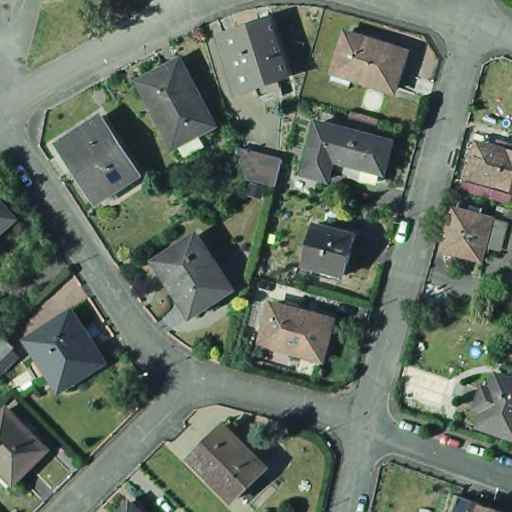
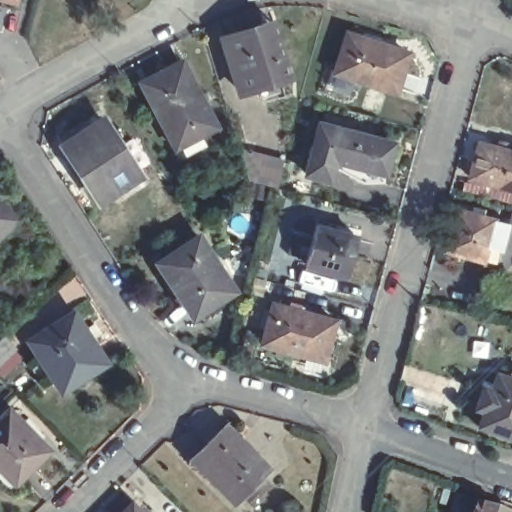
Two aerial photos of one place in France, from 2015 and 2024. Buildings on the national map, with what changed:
unchanged [(238,90),(219,35),(252,24),(269,18),(273,28),(288,74),(238,90)]
unchanged [(339,78),(344,64),(354,25),(416,42),(404,80),(363,69),(358,83),(339,78)]
unchanged [(183,58),(218,122),(178,145),(154,103),(143,82),(148,78),(183,58)]
unchanged [(69,143),(108,118),(145,169),(110,193),(105,196),(85,165),(69,143)]
unchanged [(383,171),(332,158),(326,177),(302,170),(316,122),(390,142),(383,171)]
unchanged [(502,142),(512,145),(512,189),(469,177),(474,158),(478,142),(483,143),(500,148),(502,142)]
unchanged [(281,158),(273,186),(246,178),(236,143),(281,158)]
unchanged [(262,186),(259,195),(248,192),(251,182),(262,186)]
unchanged [(21,220),(0,239),(0,196),(21,220)]
unchanged [(499,207),(511,210),(502,245),(490,242),(499,207)]
unchanged [(454,208),(493,219),(482,260),(443,249),(454,208)]
unchanged [(360,248),(349,285),(307,273),(318,235),(360,248)]
unchanged [(189,238),(226,292),(190,318),(151,265),(189,238)]
unchanged [(338,321),(326,360),(266,344),(277,305),(338,321)]
unchanged [(29,338),(73,310),(84,328),(105,361),(99,364),(61,388),(29,338)]
unchanged [(14,352),(0,366),(0,341),(2,339),(14,352)]
unchanged [(489,410),(481,407),(489,386),(496,388),(502,372),(512,376),(512,436),(483,425),(489,410)]
unchanged [(0,464),(0,418),(11,406),(52,447),(23,477),(19,482),(4,468),(0,464)]
unchanged [(229,503),(193,467),(208,454),(200,445),(218,429),(259,474),(229,503)]
unchanged [(469,502),(484,507),(497,512),(465,512),(469,501),(469,502)]
unchanged [(121,512),(131,502),(141,512),(121,512)]

